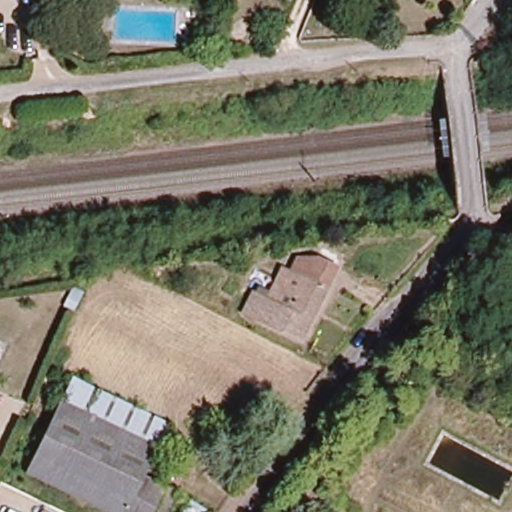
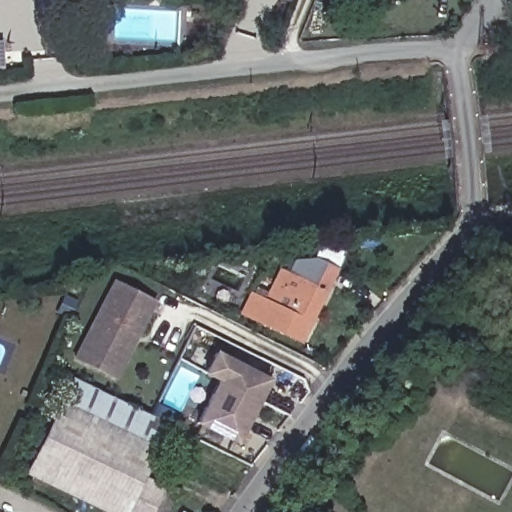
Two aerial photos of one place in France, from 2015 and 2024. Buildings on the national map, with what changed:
demolished [(312,0),(322,0),(322,1),(332,5),(320,34),(303,28),(312,0)]
unchanged [(305,342),(262,320),(289,264),(296,267),(301,256),(337,274),(305,342)]
new [(116,284),(156,305),(117,380),(77,360),(116,284)]
new [(244,443),(206,424),(227,381),(212,374),(222,353),(276,379),(244,443)]
unchanged [(70,374),(139,407),(144,397),(169,410),(150,449),(57,404),(70,374)]
demolished [(252,432),(218,416),(227,394),(235,397),(240,387),(266,399),(252,432)]
unchanged [(24,475),(57,404),(150,449),(138,476),(160,487),(148,512),(98,512),(24,475)]

